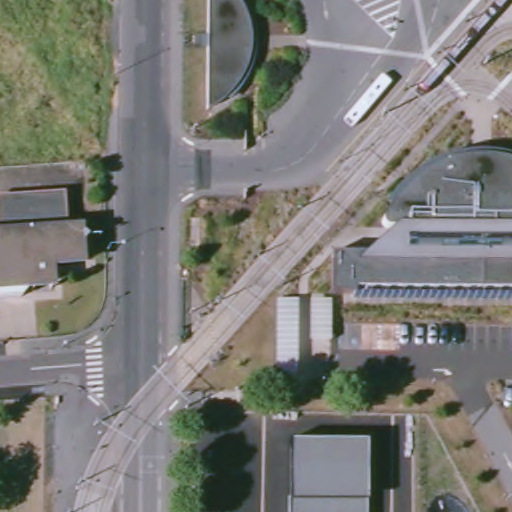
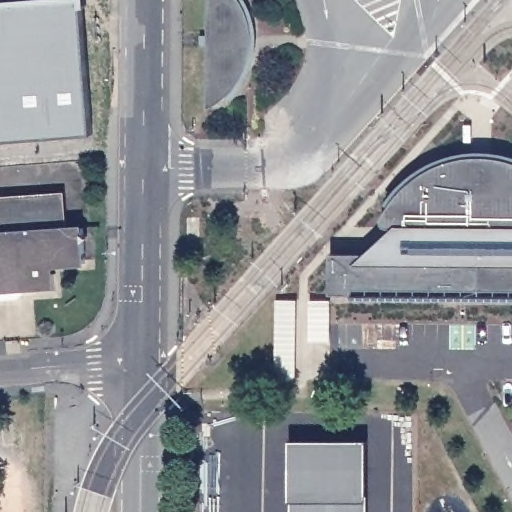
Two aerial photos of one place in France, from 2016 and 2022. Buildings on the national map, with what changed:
unchanged [(244,4),(248,10),(251,17),(253,22),(254,27),(255,35),(256,42),(256,44),(255,51),(253,58),(252,65),(251,68),(248,75),(243,85),(238,90),(234,96),(229,100),(223,105),(217,109),(212,112),(209,112),(211,0),(242,0),(244,4)]
new [(0,144),(0,14),(80,9),(91,137),(0,144)]
unchanged [(333,293),(334,252),(398,253),(398,227),(388,227),(386,225),(385,221),(393,206),(402,194),(419,178),(431,171),(444,164),(461,159),(476,156),(494,156),(512,159),(512,288),(356,288),(356,293),(333,293)]
unchanged [(9,228),(6,197),(61,193),(63,227),(81,226),(81,236),(84,258),(48,262),(49,282),(27,285),(19,297),(0,299),(0,228),(9,228)]
unchanged [(366,512),(290,512),(289,498),(288,439),(366,438),(366,498),(366,512)]

